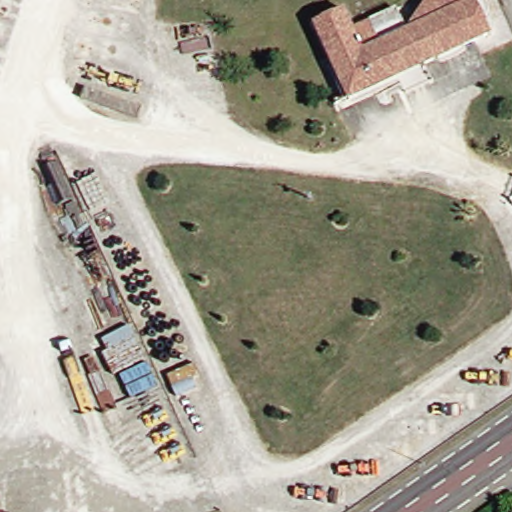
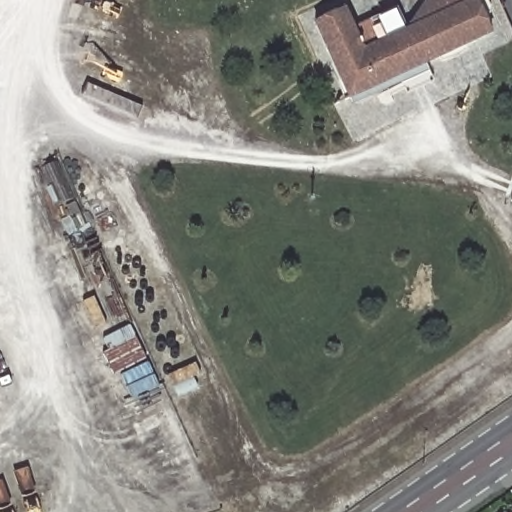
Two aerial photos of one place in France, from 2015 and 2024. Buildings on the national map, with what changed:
unchanged [(405,95),(397,76),(349,99),(315,23),(342,10),(352,30),(369,21),(373,30),(400,16),(406,30),(426,0),(475,0),(486,24),(490,35),(424,65),(433,82),(405,95)]

